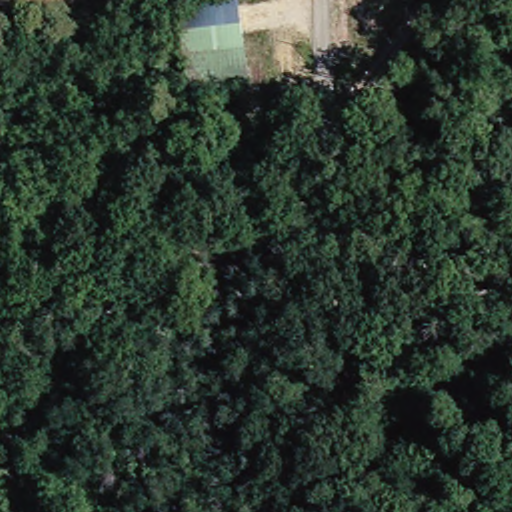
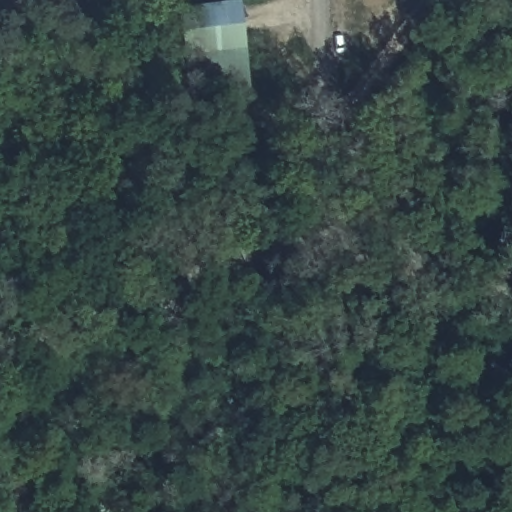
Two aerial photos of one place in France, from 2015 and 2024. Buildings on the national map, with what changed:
unchanged [(231,0),(246,0),(257,92),(198,98),(186,5),(231,0)]

